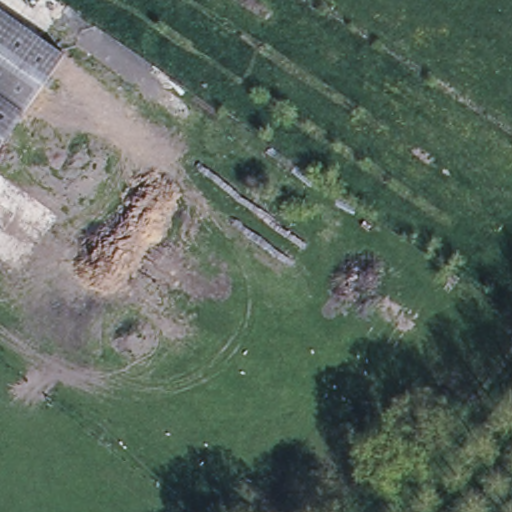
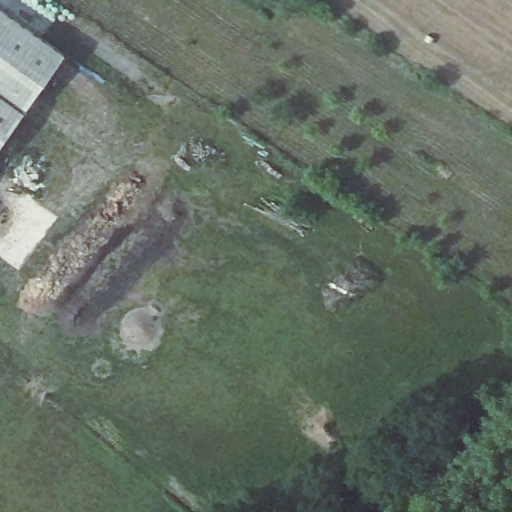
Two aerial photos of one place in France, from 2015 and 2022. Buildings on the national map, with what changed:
unchanged [(65,54),(52,71),(0,35),(0,9),(65,54)]
unchanged [(0,146),(0,35),(52,71),(0,146)]

